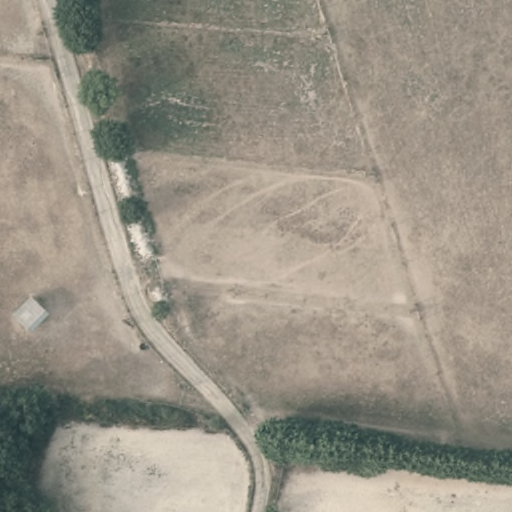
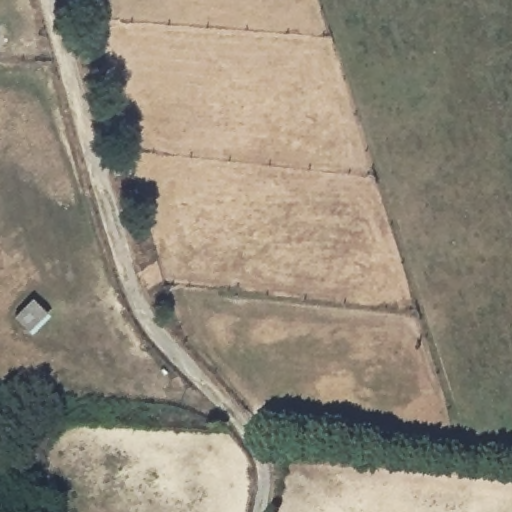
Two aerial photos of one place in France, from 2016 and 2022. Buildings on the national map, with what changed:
[]

